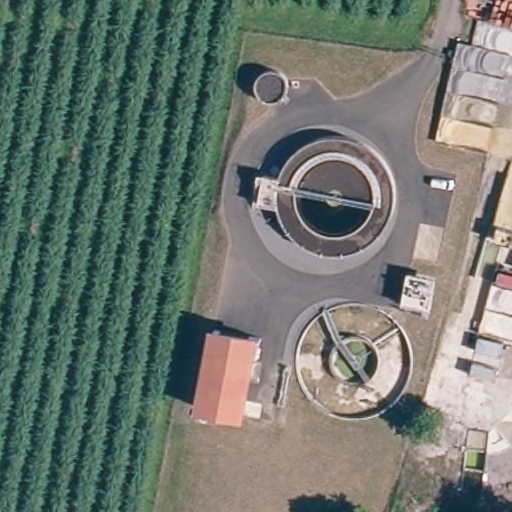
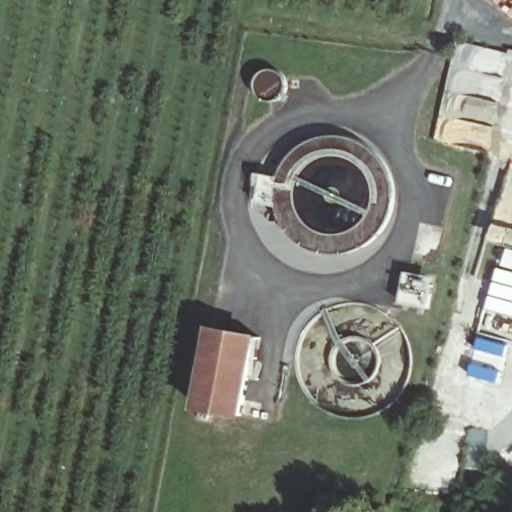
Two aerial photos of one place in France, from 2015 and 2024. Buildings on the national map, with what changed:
unchanged [(407,273),(435,278),(434,283),(429,310),(402,305),(407,278),(407,273)]
unchanged [(214,330),(256,337),(241,416),(199,408),(214,330)]

